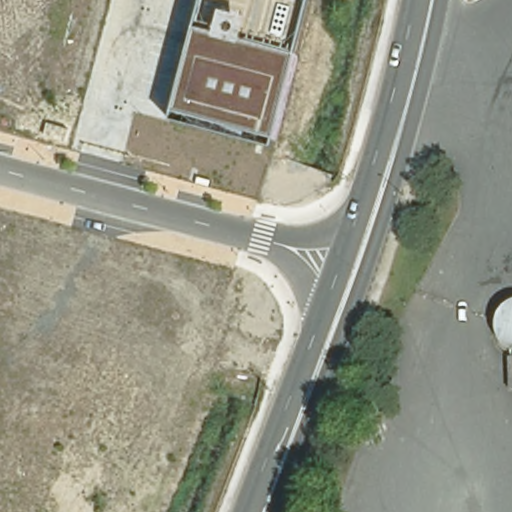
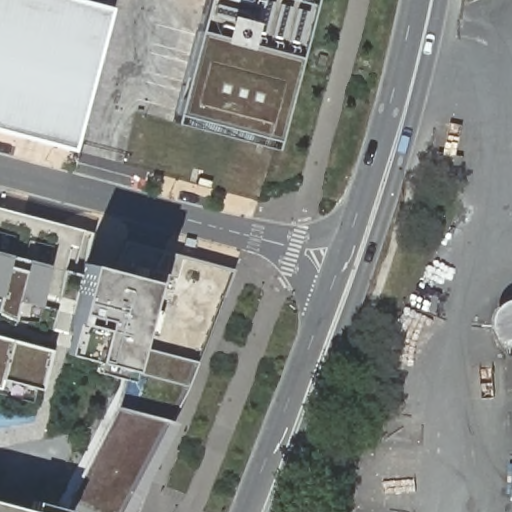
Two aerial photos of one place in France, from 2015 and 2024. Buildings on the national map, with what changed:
new [(78,150),(0,130),(0,0),(74,0),(112,10),(78,150)]
unchanged [(173,125),(206,0),(314,0),(274,151),(173,125)]
new [(0,208),(83,230),(80,258),(155,247),(226,276),(191,387),(125,512),(0,512),(0,208)]
unchanged [(511,362),(508,362),(506,359),(504,357),(503,355),(501,353),(500,351),(499,348),(498,346),(498,343),(498,341),(498,337),(498,335),(499,332),(500,330),(501,327),(503,326),(505,323),(507,322),(509,320),(511,318),(512,318),(512,364),(511,362)]

